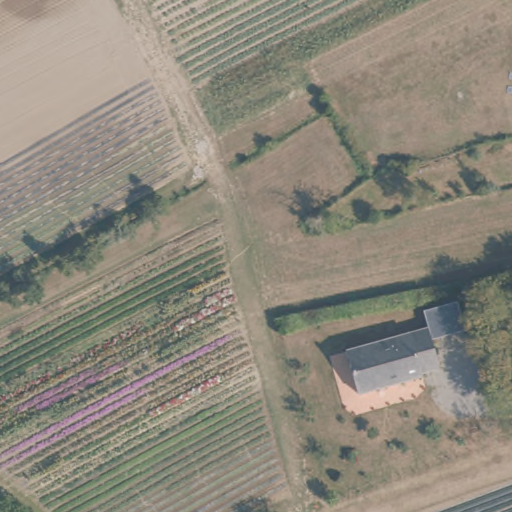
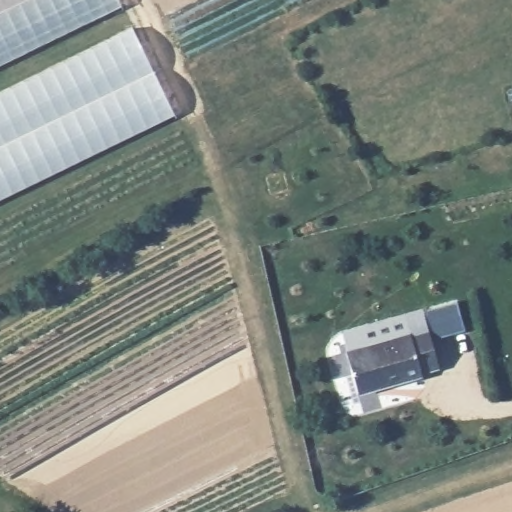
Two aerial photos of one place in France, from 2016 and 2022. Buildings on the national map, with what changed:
unchanged [(0,0),(118,0),(120,5),(0,65),(0,0)]
new [(0,92),(132,28),(174,114),(0,199),(0,92)]
new [(429,327),(347,349),(341,331),(455,300),(463,330),(432,338),(429,327)]
unchanged [(429,327),(440,367),(422,372),(423,375),(359,393),(347,349),(429,327)]

